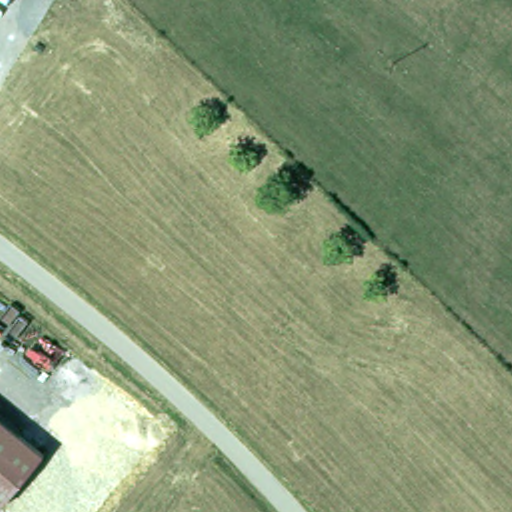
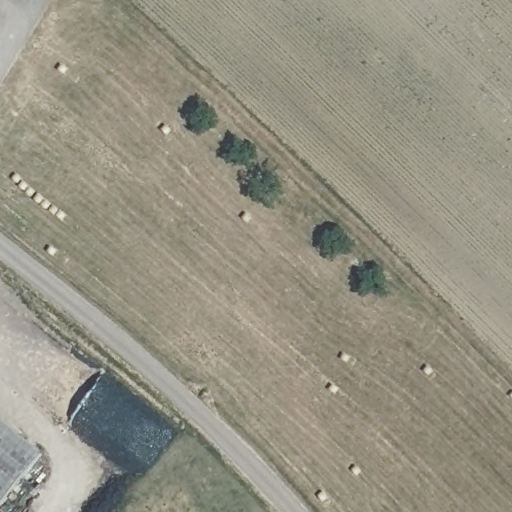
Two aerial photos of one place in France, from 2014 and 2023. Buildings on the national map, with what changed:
unchanged [(44,452),(0,506),(0,416),(44,452)]

